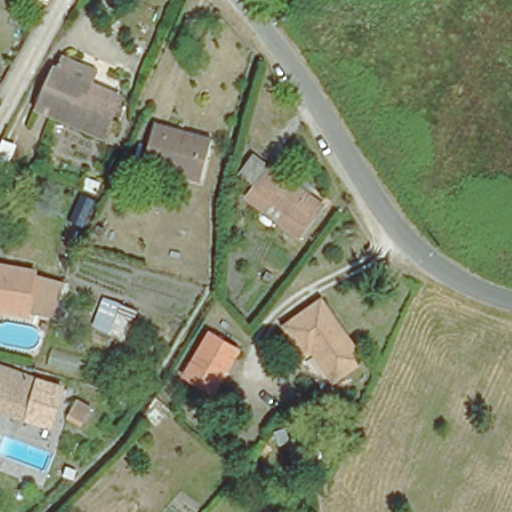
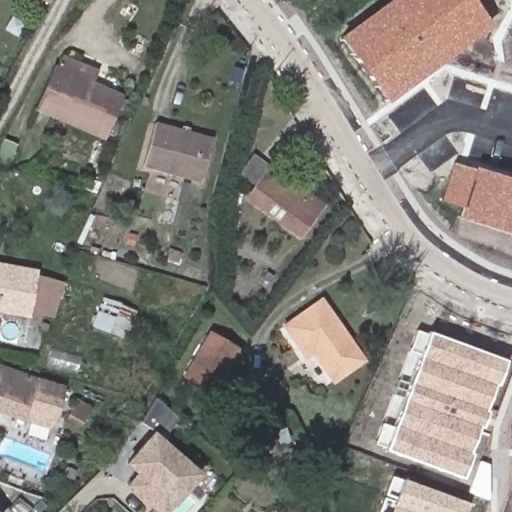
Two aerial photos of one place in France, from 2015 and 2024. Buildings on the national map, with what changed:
new [(473,0),(493,26),(387,105),(338,38),(389,0),(473,0)]
unchanged [(104,135),(39,109),(56,71),(60,60),(92,73),(88,84),(119,96),(104,135)]
unchanged [(155,126),(212,142),(202,180),(144,165),(155,126)]
unchanged [(264,201),(273,191),(257,179),(269,161),(335,211),(314,239),(264,201)]
new [(457,218),(461,207),(442,201),(454,163),(489,175),(492,172),(512,179),(512,236),(457,218)]
unchanged [(45,324),(0,315),(0,271),(57,282),(45,324)]
unchanged [(136,310),(124,339),(94,327),(105,298),(136,310)]
unchanged [(364,361),(335,382),(313,352),(305,355),(285,326),(322,301),(364,361)]
new [(462,477),(384,449),(427,333),(504,361),(470,453),(462,477)]
unchanged [(213,392),(185,376),(210,335),(237,351),(213,392)]
unchanged [(29,398),(22,419),(0,410),(0,367),(35,380),(29,398)]
new [(29,398),(35,380),(64,389),(51,427),(22,419),(29,398)]
new [(158,396),(181,417),(167,433),(163,429),(155,428),(143,420),(158,396)]
new [(197,475),(164,512),(161,512),(130,486),(141,474),(129,463),(152,436),(197,475)]
new [(401,479),(468,503),(465,512),(389,512),(401,479)]

